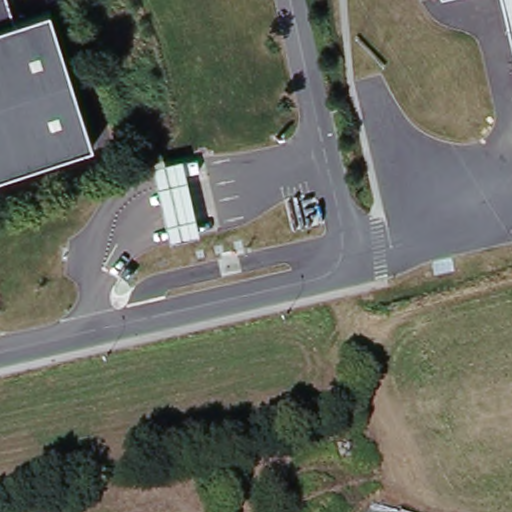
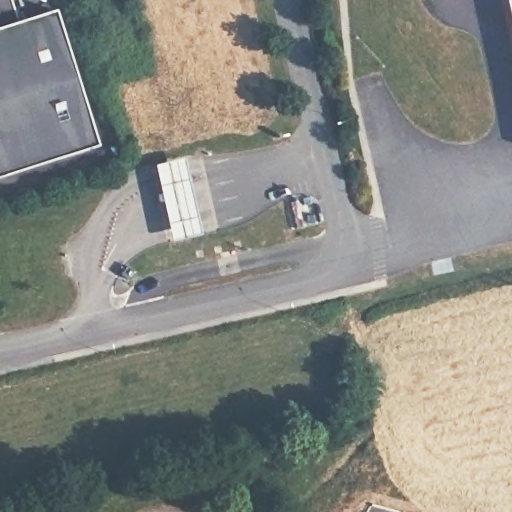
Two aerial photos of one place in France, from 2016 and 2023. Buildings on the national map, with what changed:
unchanged [(54,10),(98,146),(0,176),(0,0),(11,0),(18,21),(54,10)]
unchanged [(503,0),(512,0),(512,38),(503,0)]
unchanged [(199,235),(169,242),(153,165),(180,157),(199,235)]
unchanged [(382,512),(364,512),(368,505),(382,512)]

